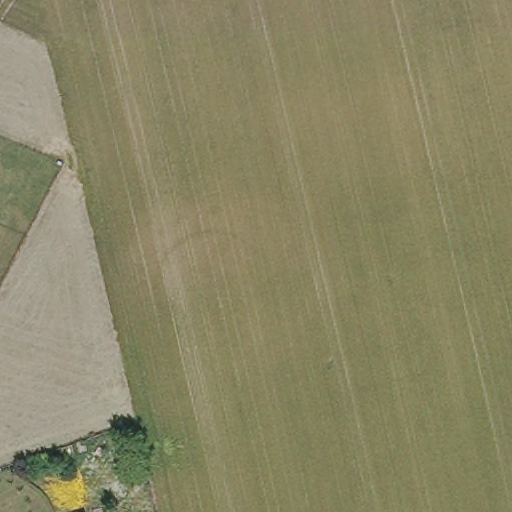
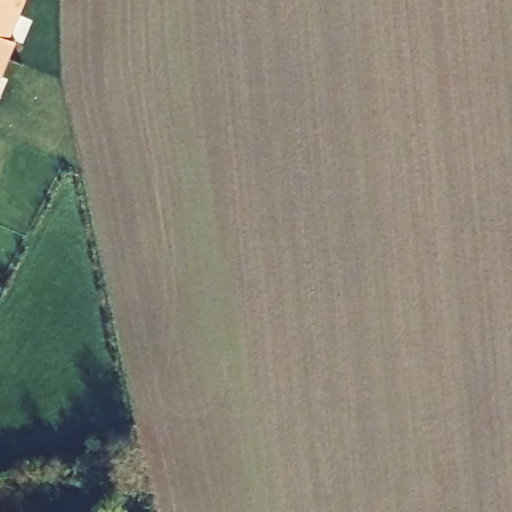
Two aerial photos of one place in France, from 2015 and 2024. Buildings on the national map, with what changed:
new [(11,37),(18,40),(10,58),(0,54),(0,0),(26,0),(11,37)]
new [(10,58),(3,76),(0,75),(0,54),(10,58)]

